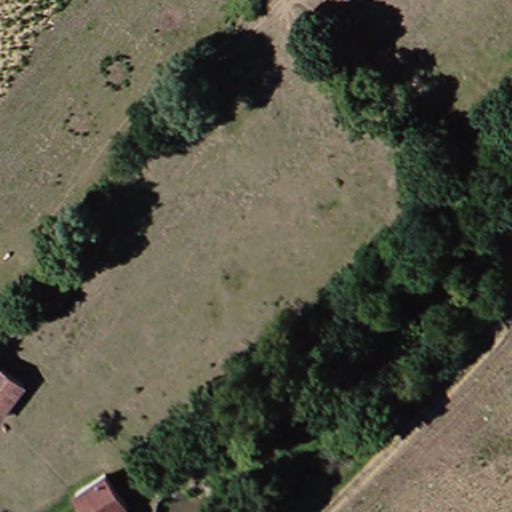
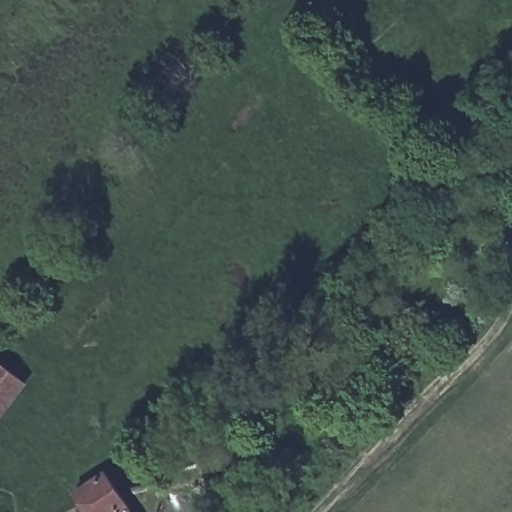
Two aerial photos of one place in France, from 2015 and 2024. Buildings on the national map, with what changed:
unchanged [(16,388),(0,407),(0,372),(16,388)]
unchanged [(107,487),(119,502),(120,504),(110,512),(81,512),(76,505),(68,496),(96,472),(107,487)]
unchanged [(125,512),(110,512),(120,504),(125,512)]

